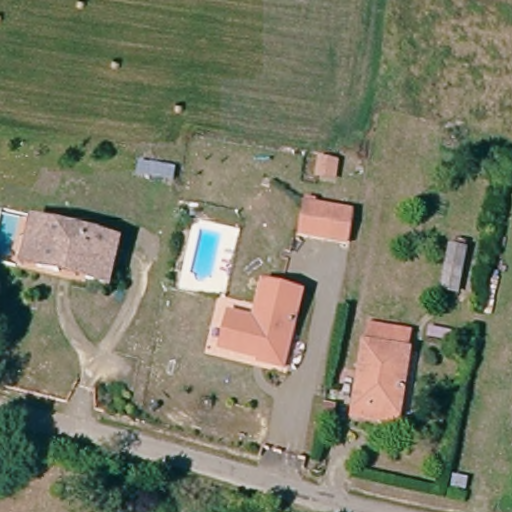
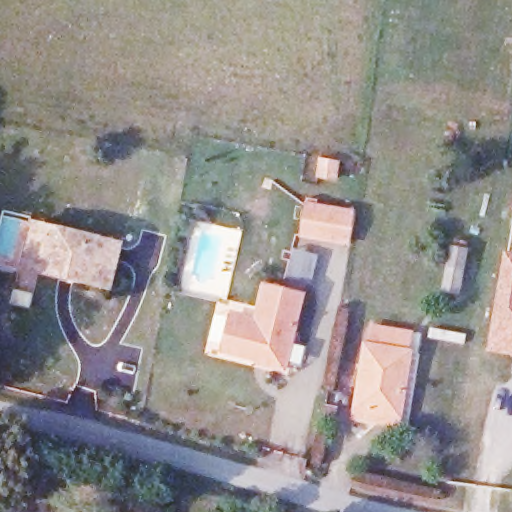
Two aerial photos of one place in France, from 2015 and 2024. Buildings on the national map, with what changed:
unchanged [(348,245),(309,238),(297,235),(303,206),(315,208),(353,215),(348,245)]
unchanged [(38,271),(25,267),(31,244),(36,224),(123,244),(112,289),(85,282),(67,278),(38,271)]
new [(512,253),(512,355),(487,351),(505,251),(512,253)]
unchanged [(440,291),(444,271),(462,274),(458,295),(440,291)]
unchanged [(270,364),(273,351),(262,349),(260,356),(225,347),(233,317),(258,324),(268,285),(290,291),(306,295),(288,369),(270,364)]
unchanged [(383,424),(356,419),(371,349),(374,349),(378,329),(410,336),(406,353),(410,354),(400,417),(398,427),(383,424)]

